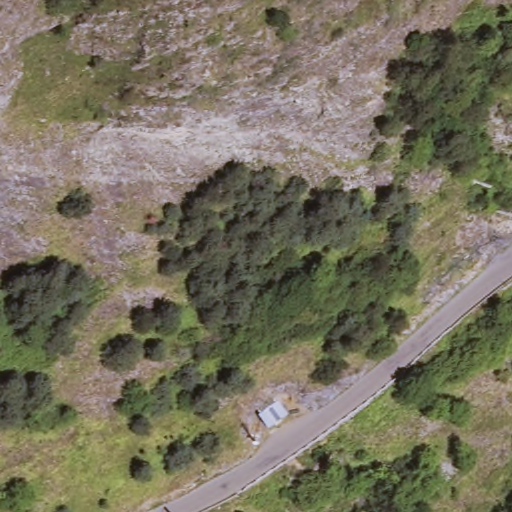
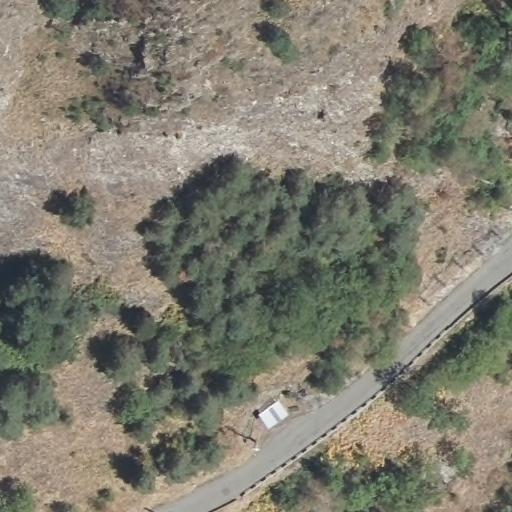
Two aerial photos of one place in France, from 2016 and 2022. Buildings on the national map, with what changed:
unchanged [(257,418),(272,405),(283,418),(268,431),(257,418)]

